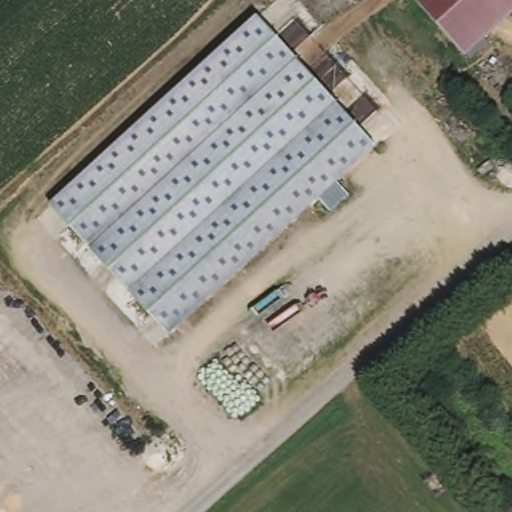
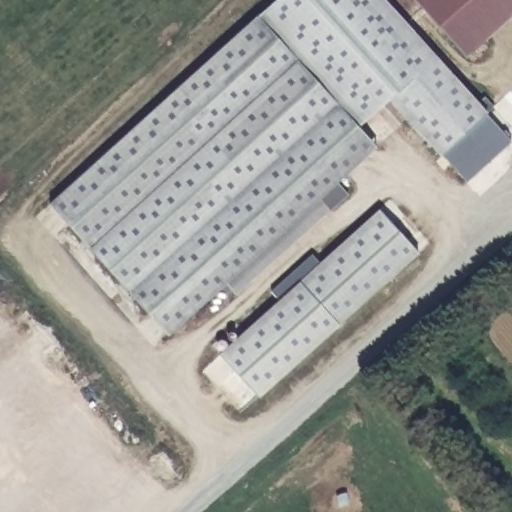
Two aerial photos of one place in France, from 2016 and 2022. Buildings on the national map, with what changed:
new [(278,0),(386,0),(486,112),(511,141),(468,182),(441,154),(390,100),(360,126),(260,16),(278,0)]
unchanged [(512,19),(465,62),(413,0),(512,0),(512,19)]
unchanged [(51,205),(260,16),(377,146),(168,337),(51,205)]
new [(348,192),(236,295),(227,283),(338,181),(348,192)]
new [(320,262),(379,209),(419,252),(260,397),(220,352),(278,300),(270,292),(312,254),(320,262)]

